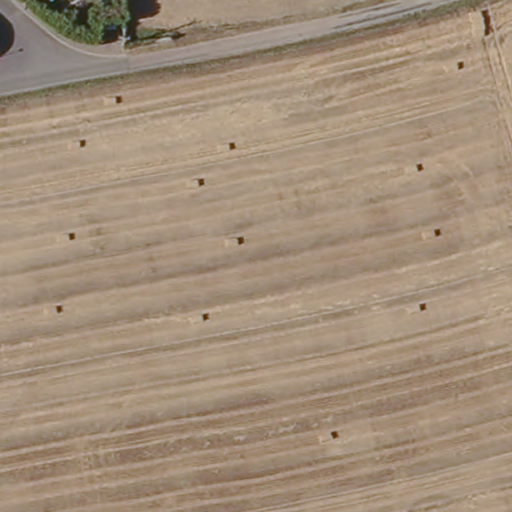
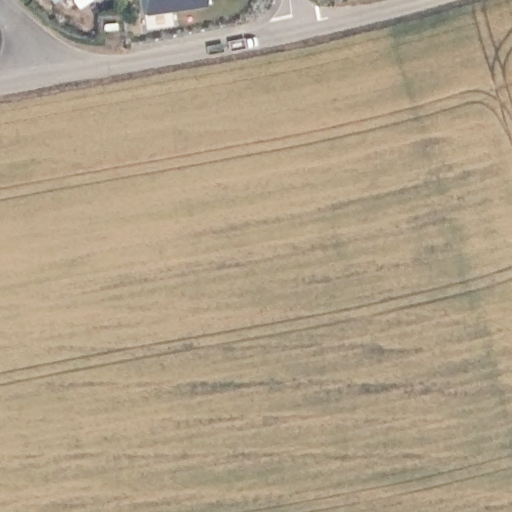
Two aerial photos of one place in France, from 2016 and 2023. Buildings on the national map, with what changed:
unchanged [(51,0),(56,0),(53,2),(51,0)]
new [(204,5),(143,14),(141,0),(204,0),(204,5)]
unchanged [(116,23),(116,30),(104,31),(103,24),(116,23)]

